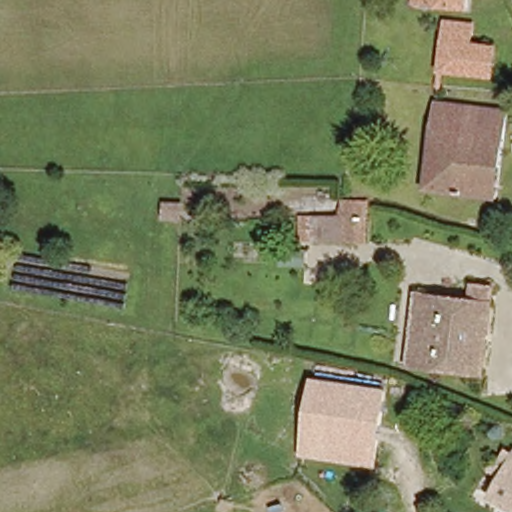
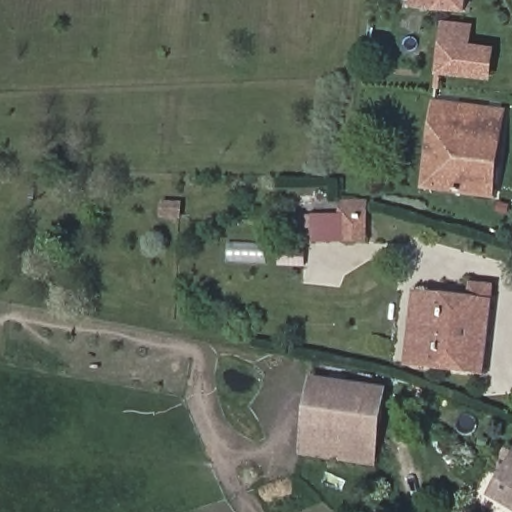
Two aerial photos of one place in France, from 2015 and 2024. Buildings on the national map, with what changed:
unchanged [(466,5),(447,2),(429,0),(466,0),(466,5)]
unchanged [(472,46),(484,48),(482,76),(439,72),(444,25),(474,29),(472,46)]
unchanged [(496,197),(426,188),(436,105),(503,114),(496,197)]
unchanged [(368,243),(297,244),(297,213),(339,213),(339,195),(367,195),(368,243)]
unchanged [(404,366),(414,292),(467,298),(462,372),(404,366)]
unchanged [(489,301),(483,374),(462,372),(467,298),(489,301)]
unchanged [(309,445),(309,388),(382,392),(379,447),(309,445)]
unchanged [(379,468),(308,466),(309,445),(379,447),(379,468)]
unchanged [(494,490),(512,457),(512,500),(494,490)]

